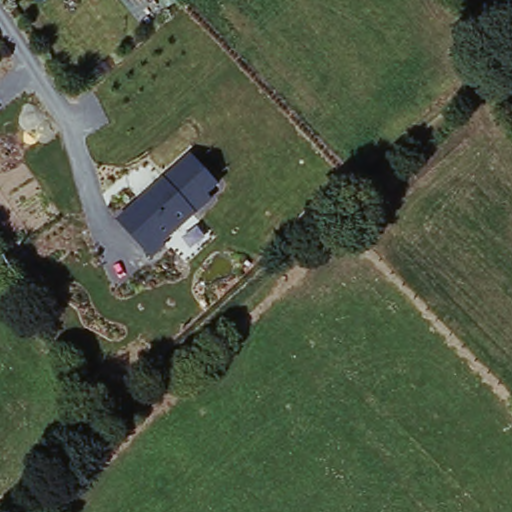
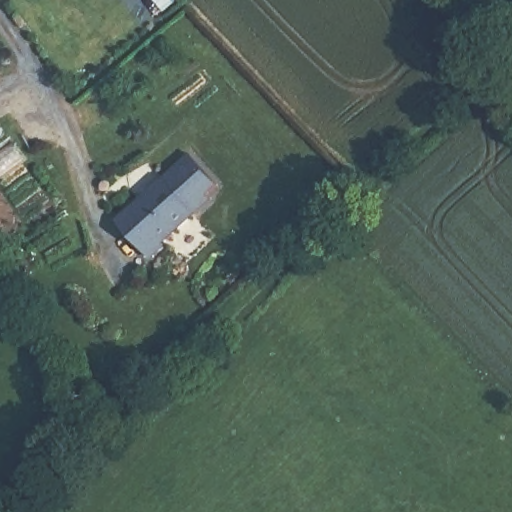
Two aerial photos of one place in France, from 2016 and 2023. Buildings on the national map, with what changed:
unchanged [(223,185),(150,255),(115,223),(194,154),(223,185)]

